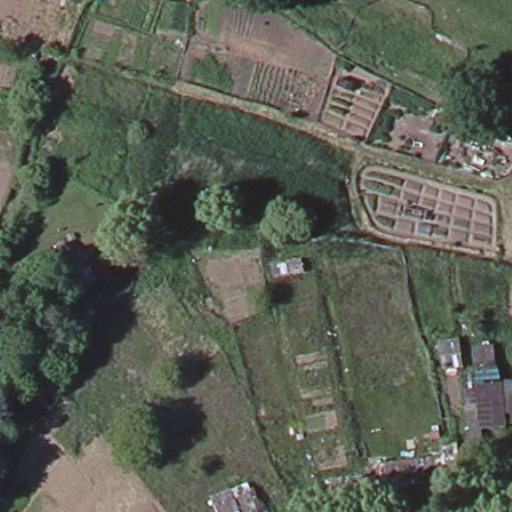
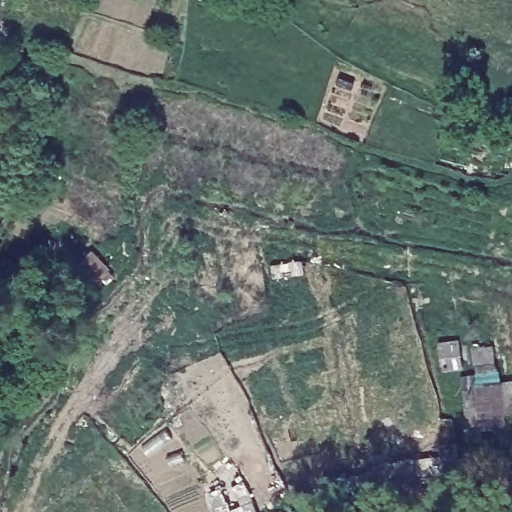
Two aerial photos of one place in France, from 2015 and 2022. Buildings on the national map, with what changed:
unchanged [(46,249),(65,234),(100,273),(84,292),(46,249)]

